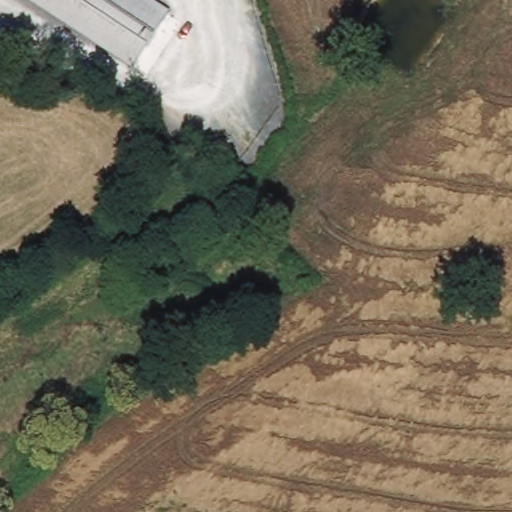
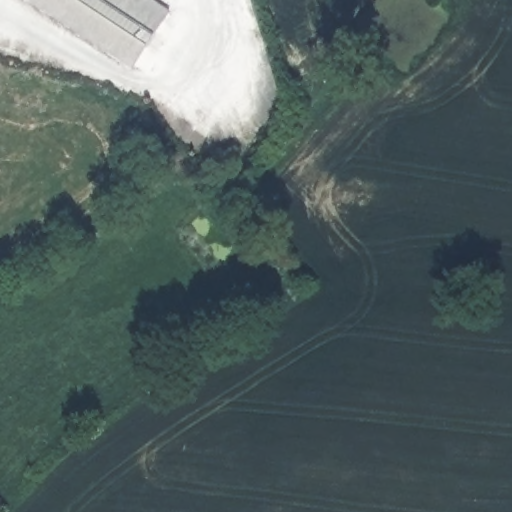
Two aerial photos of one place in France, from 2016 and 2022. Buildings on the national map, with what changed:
unchanged [(169,7),(133,67),(30,0),(158,0),(169,7)]

